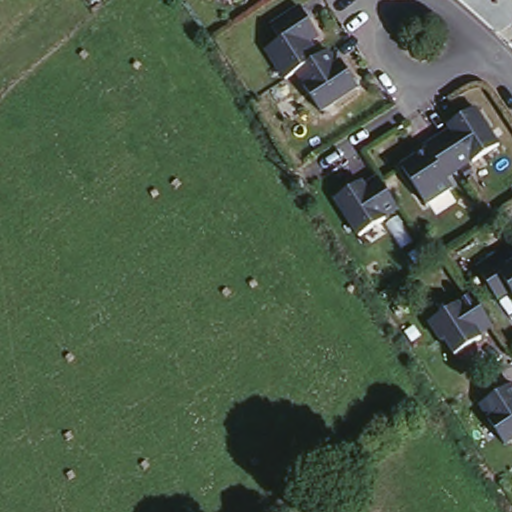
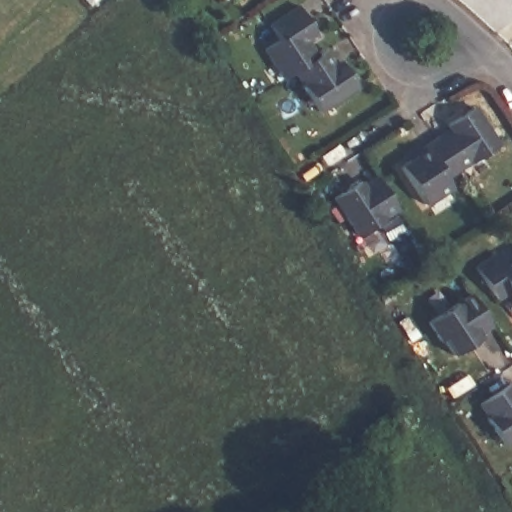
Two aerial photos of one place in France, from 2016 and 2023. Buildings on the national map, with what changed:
unchanged [(300,5),(320,34),(310,40),(319,55),(329,49),(337,62),(342,59),(360,85),(323,109),(305,83),(307,83),(298,70),(287,76),(267,46),(281,37),(271,23),(300,5)]
unchanged [(428,146),(425,143),(439,134),(452,125),(449,120),(474,104),(500,141),(474,159),(474,157),(447,175),(454,184),(428,202),(402,163),(428,146)]
unchanged [(357,183),(360,187),(374,179),(395,211),(381,219),(382,220),(355,236),(331,199),(357,183)]
unchanged [(474,264),(494,251),(503,265),(512,259),(512,294),(507,287),(494,296),(491,291),(474,264)]
unchanged [(469,296),(490,328),(477,336),(479,339),(453,357),(443,341),(440,343),(428,324),(469,296)]
unchanged [(512,392),(512,440),(501,448),(484,422),(485,421),(476,407),(508,386),(512,392)]

